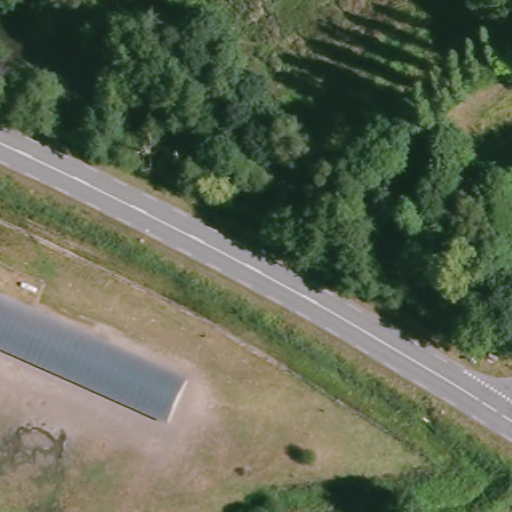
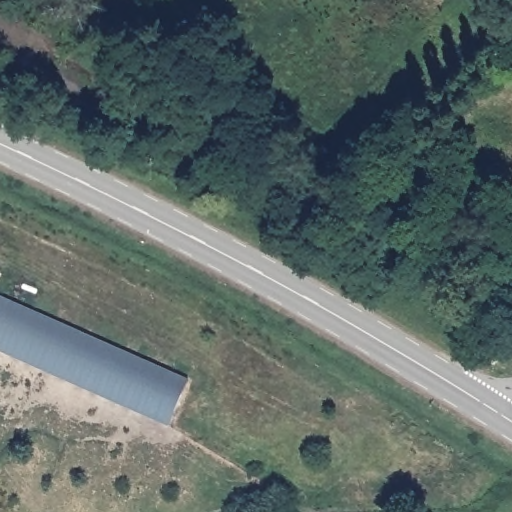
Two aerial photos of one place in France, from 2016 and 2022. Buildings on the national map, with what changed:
unchanged [(0,296),(188,380),(170,427),(0,350),(0,296)]

